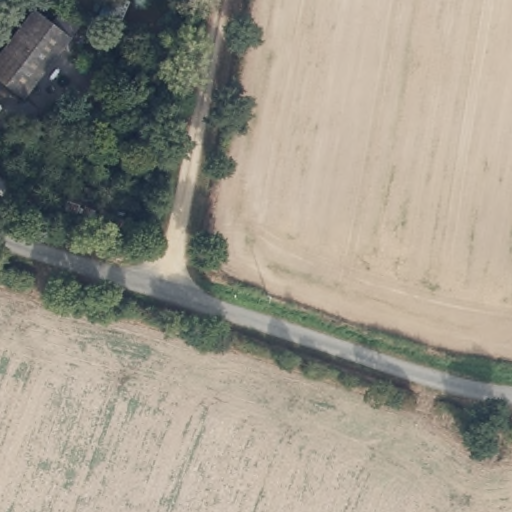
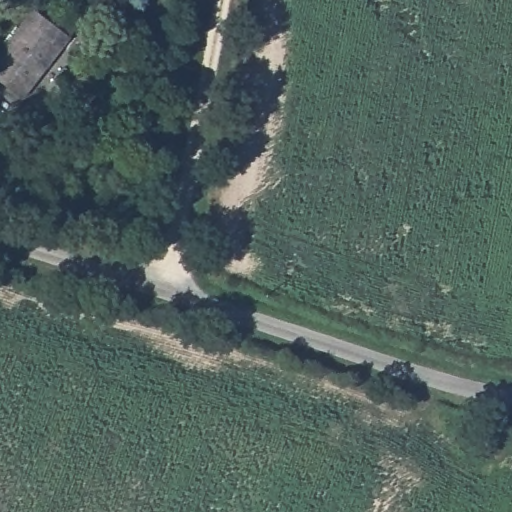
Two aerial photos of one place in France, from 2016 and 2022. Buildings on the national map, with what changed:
unchanged [(68,33),(21,93),(0,77),(0,49),(32,6),(68,33)]

